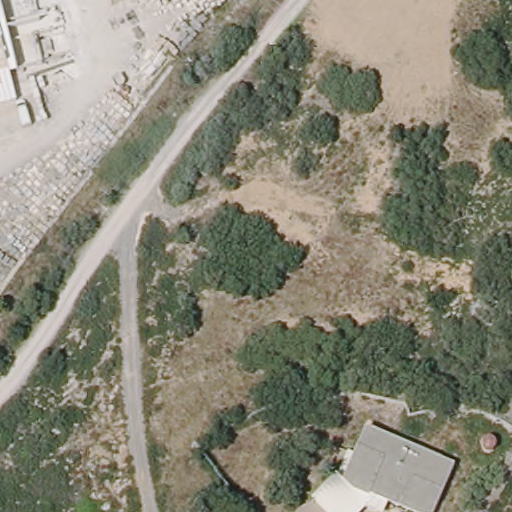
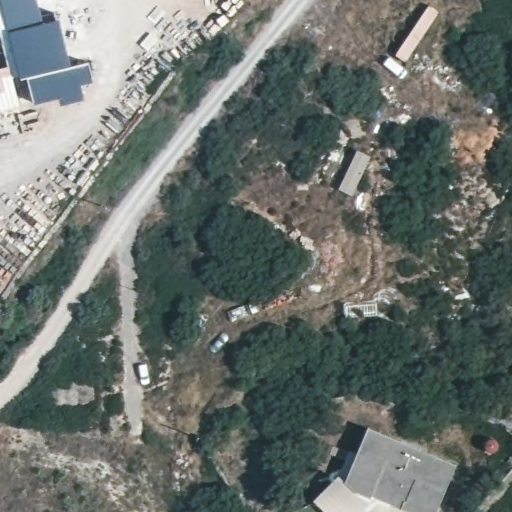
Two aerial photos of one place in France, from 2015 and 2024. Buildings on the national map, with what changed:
new [(58,19),(69,67),(29,77),(33,102),(0,110),(0,69),(8,67),(0,35),(0,0),(36,0),(42,23),(58,19)]
new [(29,77),(69,67),(88,62),(93,82),(81,86),(85,100),(61,107),(59,99),(34,105),(33,102),(29,77)]
unchanged [(345,484),(368,429),(457,467),(438,512),(411,512),(345,484)]
unchanged [(391,503),(388,512),(369,512),(367,511),(366,512),(292,512),(313,502),(314,502),(340,477),(345,484),(391,503)]

